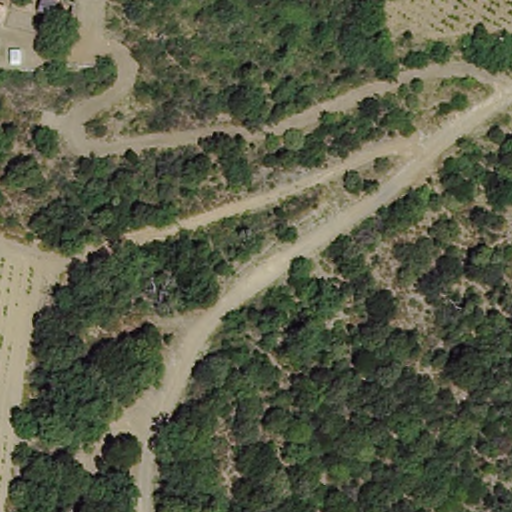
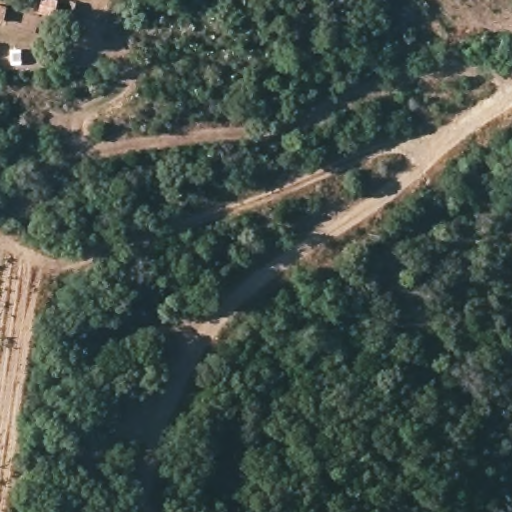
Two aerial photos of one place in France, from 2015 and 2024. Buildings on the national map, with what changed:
unchanged [(21,52),(22,72),(1,71),(0,54),(21,52)]

